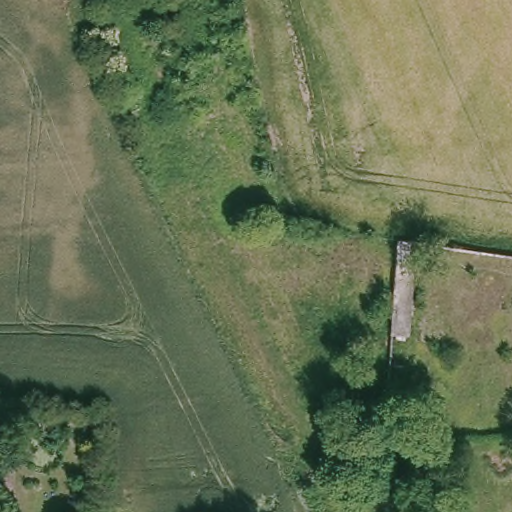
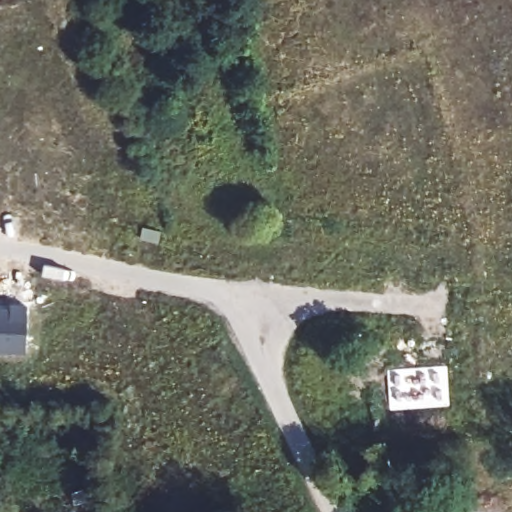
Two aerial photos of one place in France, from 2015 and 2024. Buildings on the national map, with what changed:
demolished [(395,250),(422,254),(420,261),(412,260),(410,282),(399,281),(399,295),(409,295),(406,345),(389,344),(392,307),(395,250)]
new [(26,352),(0,351),(0,304),(27,306),(26,352)]
new [(452,407),(390,411),(387,369),(448,366),(452,407)]

